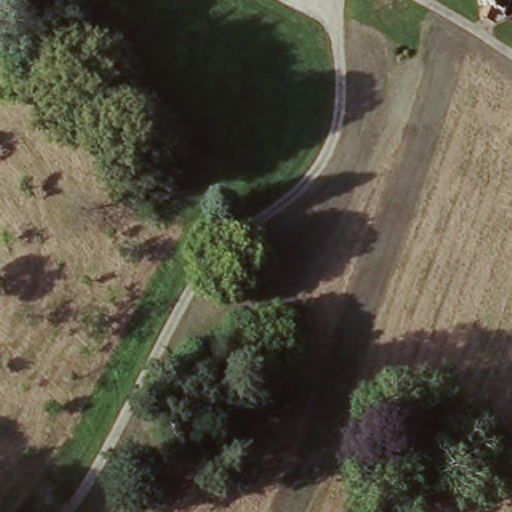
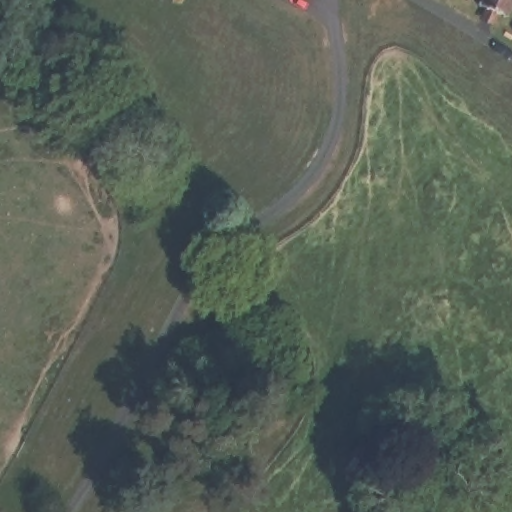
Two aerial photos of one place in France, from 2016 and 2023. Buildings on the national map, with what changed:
unchanged [(478,0),(512,0),(512,3),(504,20),(476,7),(478,0)]

